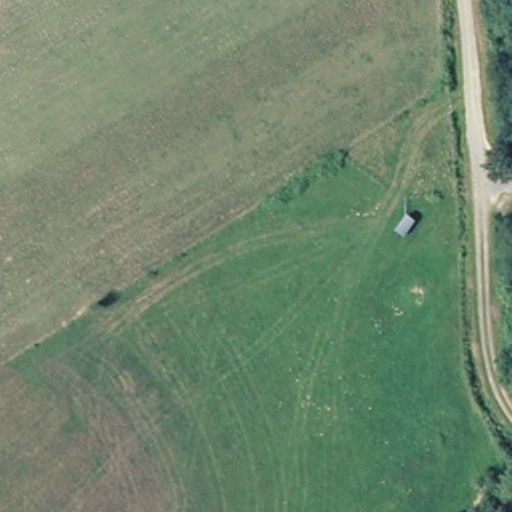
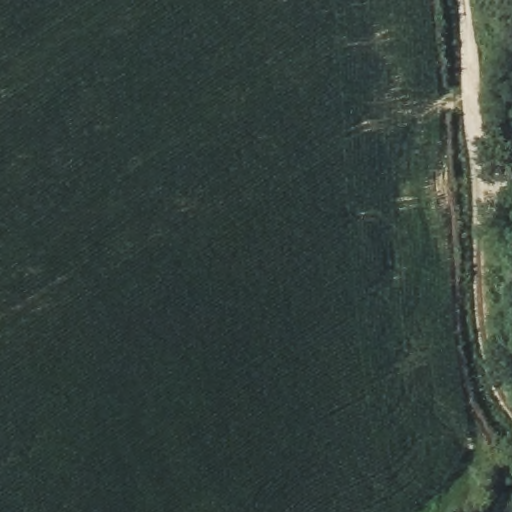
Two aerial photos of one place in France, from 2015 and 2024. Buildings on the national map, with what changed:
[]

